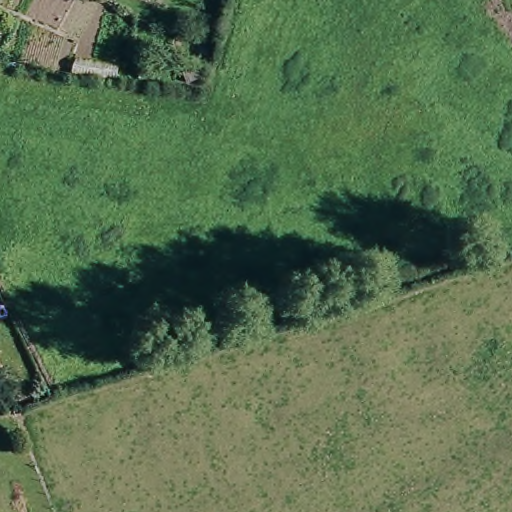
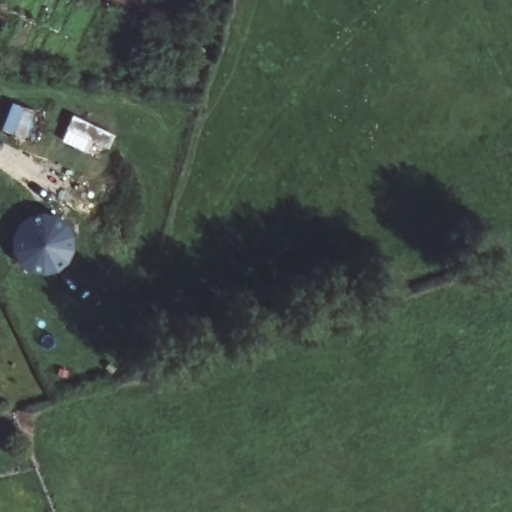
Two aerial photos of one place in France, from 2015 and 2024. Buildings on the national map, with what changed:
new [(50,212),(58,214),(65,219),(70,224),(74,232),(75,239),(75,248),(74,255),(70,262),(64,268),(57,272),(50,274),(42,274),(34,273),(27,269),(21,264),(16,258),(14,250),(12,243),(14,235),(17,228),(21,221),(27,216),(35,213),(42,212),(50,212)]

